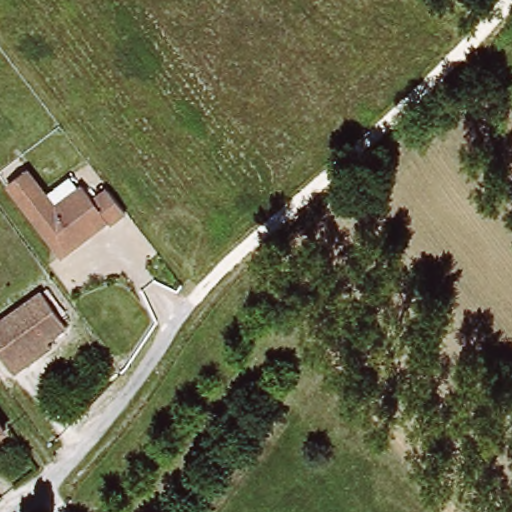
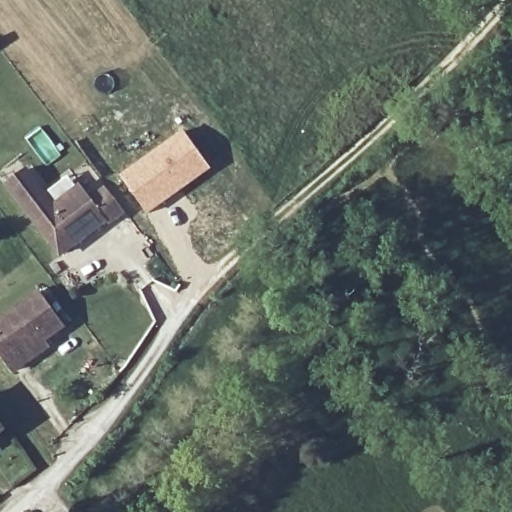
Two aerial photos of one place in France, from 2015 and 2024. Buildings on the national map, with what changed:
new [(41,125),(63,154),(47,167),(24,138),(41,125)]
new [(184,129),(212,169),(149,215),(120,175),(184,129)]
unchanged [(105,225),(103,221),(56,255),(4,184),(23,170),(51,207),(79,187),(89,201),(103,190),(120,213),(105,225)]
unchanged [(11,374),(0,358),(0,320),(39,293),(64,328),(45,341),(49,347),(25,364),(11,374)]

